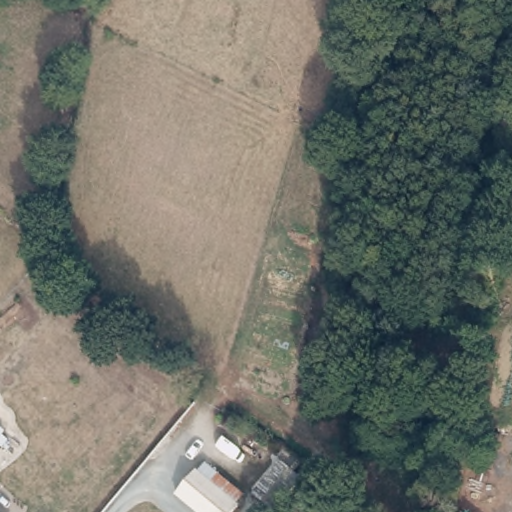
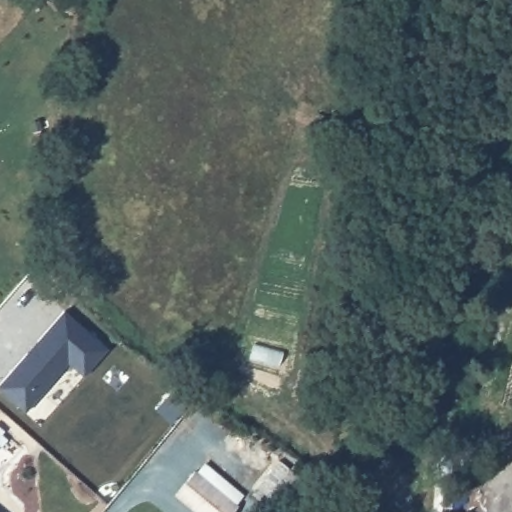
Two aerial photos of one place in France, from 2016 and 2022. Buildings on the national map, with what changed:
new [(107,349),(83,376),(69,363),(25,413),(0,391),(0,384),(65,311),(107,349)]
unchanged [(277,464),(297,477),(272,509),(252,495),(277,464)]
unchanged [(240,503),(233,512),(200,512),(180,496),(200,472),(240,503)]

